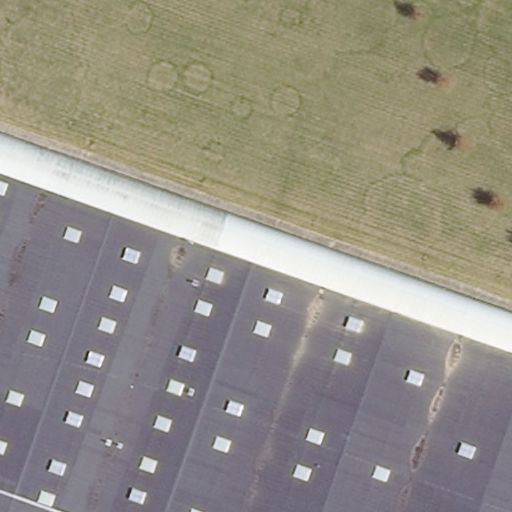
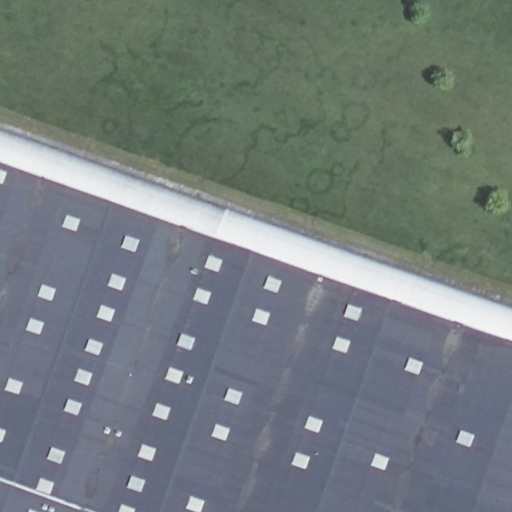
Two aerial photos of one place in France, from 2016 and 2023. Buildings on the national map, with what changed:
unchanged [(512,307),(512,512),(210,512),(0,438),(0,129),(512,307)]
unchanged [(0,512),(0,438),(210,512),(0,512)]

